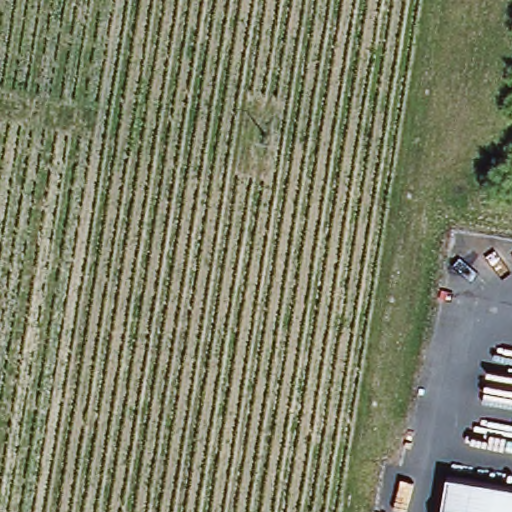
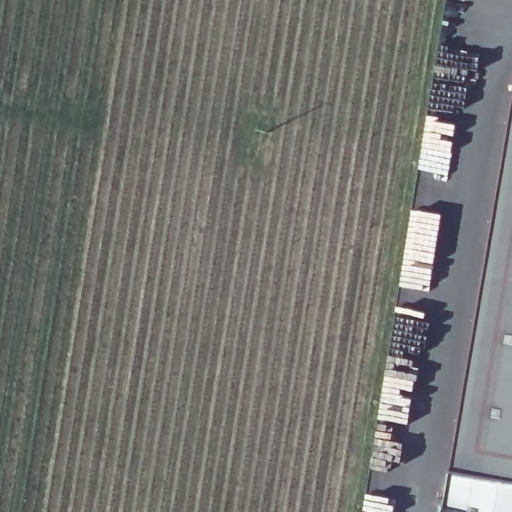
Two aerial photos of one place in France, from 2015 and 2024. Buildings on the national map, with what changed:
new [(451,463),(512,95),(512,475),(451,463)]
unchanged [(512,475),(512,512),(441,512),(451,463),(512,475)]

